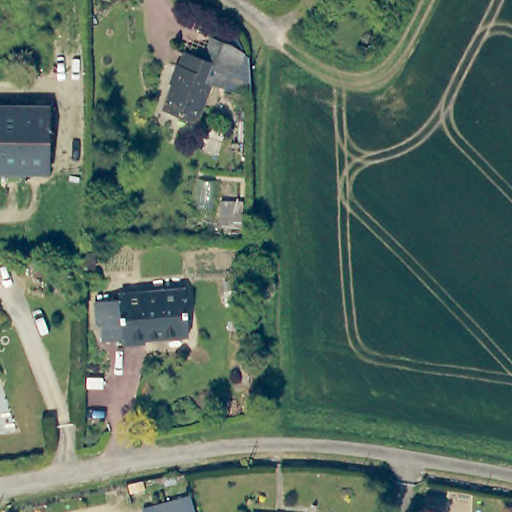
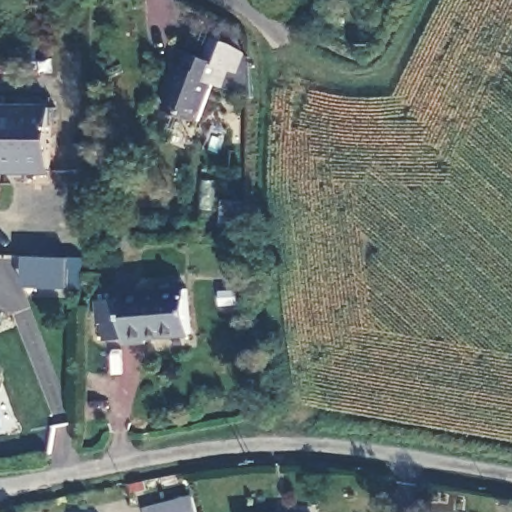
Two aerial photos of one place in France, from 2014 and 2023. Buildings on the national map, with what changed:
unchanged [(160,108),(171,86),(166,81),(175,64),(180,65),(184,56),(202,64),(210,44),(254,60),(254,102),(208,85),(193,123),(160,108)]
unchanged [(0,174),(0,108),(47,108),(47,174),(0,174)]
unchanged [(230,227),(209,227),(210,203),(229,203),(230,227)]
new [(82,288),(68,288),(22,286),(24,256),(68,258),(83,258),(82,288)]
unchanged [(106,325),(101,325),(100,302),(123,302),(122,297),(189,295),(192,338),(148,338),(148,346),(126,347),(126,343),(106,343),(106,325)]
unchanged [(191,499),(195,512),(145,512),(144,511),(191,499)]

